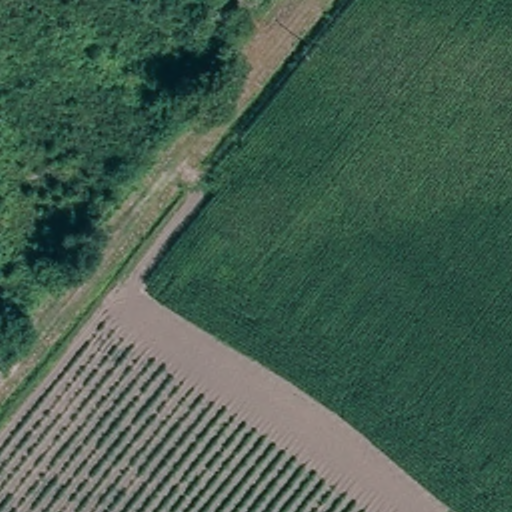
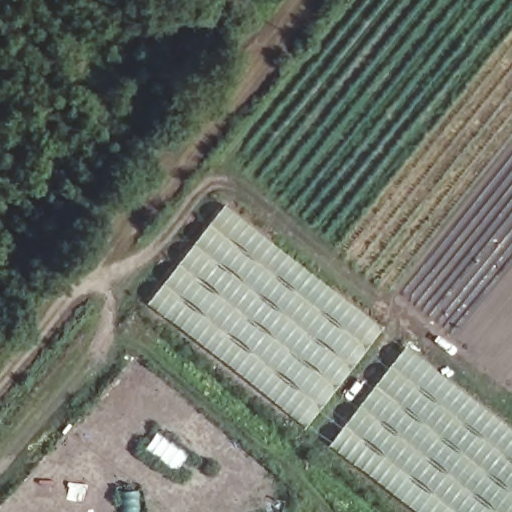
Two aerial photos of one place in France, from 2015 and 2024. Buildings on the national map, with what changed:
new [(225,205),(384,329),(346,379),(305,429),(147,304),(225,205)]
new [(512,430),(512,512),(412,512),(329,447),(406,348),(512,430)]
new [(158,432),(188,453),(178,461),(171,468),(147,449),(158,432)]

